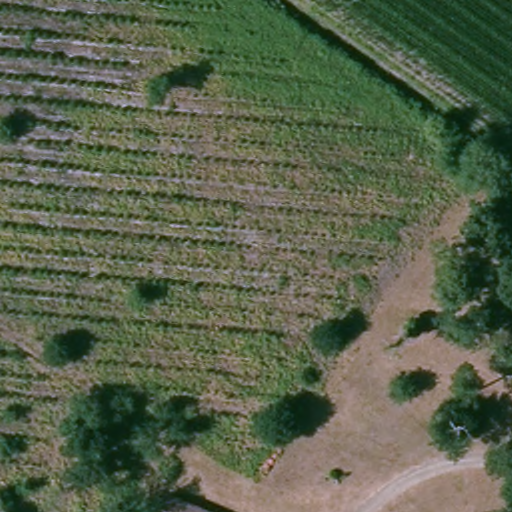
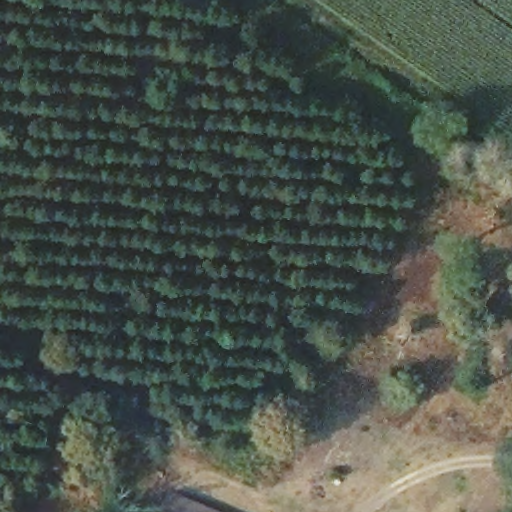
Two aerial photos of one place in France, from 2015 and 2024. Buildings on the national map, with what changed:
unchanged [(170,493),(212,512),(163,512),(170,493)]

